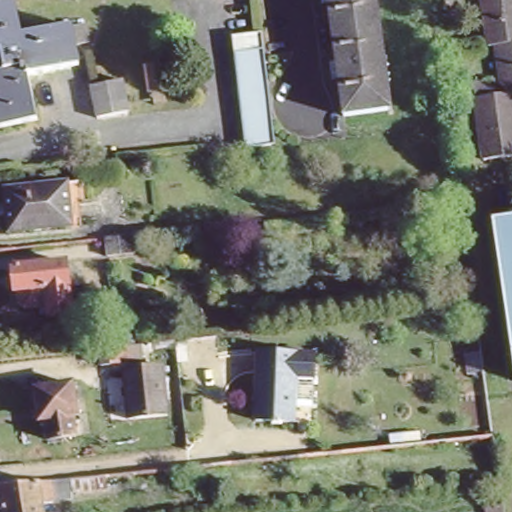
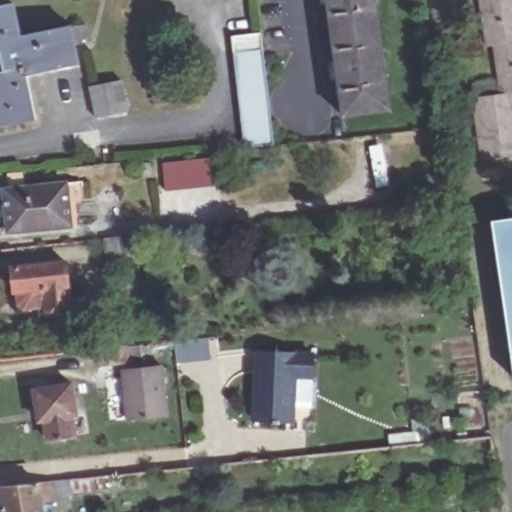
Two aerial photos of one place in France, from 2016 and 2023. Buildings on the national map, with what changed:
unchanged [(340,113),(325,0),(372,0),(387,108),(340,113)]
unchanged [(512,99),(512,153),(480,158),(471,96),(498,93),(492,46),(484,46),(478,0),(512,0),(512,90),(511,91),(512,99)]
unchanged [(20,36),(71,25),(71,26),(87,24),(90,43),(75,45),(79,64),(29,74),(38,119),(0,128),(0,7),(13,4),(20,36)]
unchanged [(245,148),(235,51),(263,49),(275,145),(245,148)]
unchanged [(130,115),(98,121),(92,90),(124,83),(130,115)]
unchanged [(30,187),(68,184),(71,226),(33,230),(30,187)]
unchanged [(5,190),(30,187),(33,230),(10,232),(5,190)]
unchanged [(512,222),(512,360),(494,225),(512,222)]
unchanged [(131,236),(133,253),(106,256),(105,239),(131,236)]
unchanged [(71,261),(76,314),(55,316),(53,308),(30,310),(24,304),(22,290),(18,290),(16,267),(71,261)]
unchanged [(127,347),(128,364),(106,366),(105,349),(127,347)]
unchanged [(291,421),(252,418),(255,349),(312,353),(311,375),(292,375),(291,421)]
unchanged [(173,419),(132,423),(128,373),(168,369),(173,419)]
unchanged [(67,383),(73,416),(68,416),(71,437),(45,441),(41,421),(36,421),(30,390),(67,383)]
unchanged [(46,488),(50,509),(37,510),(37,512),(0,512),(0,492),(46,488)]
unchanged [(488,512),(505,510),(505,512),(488,512)]

